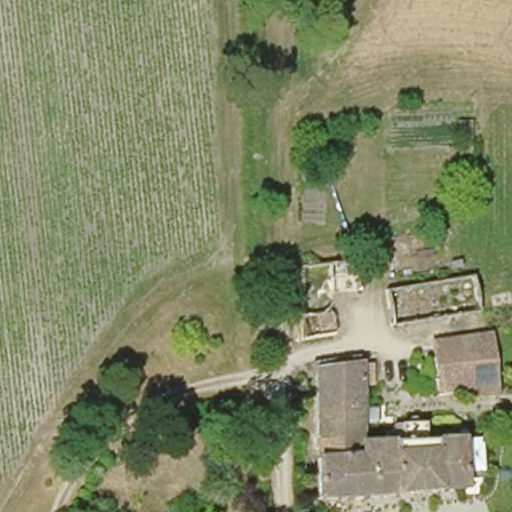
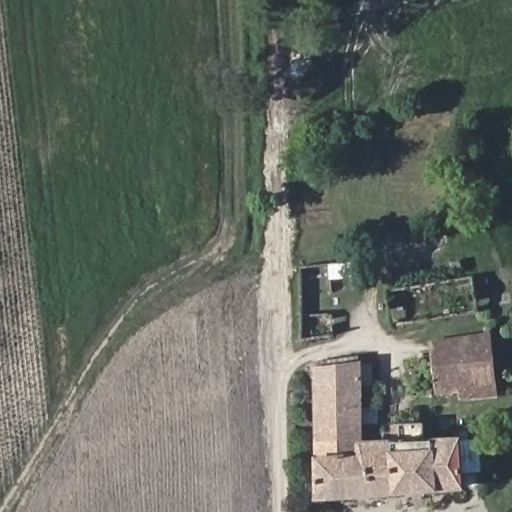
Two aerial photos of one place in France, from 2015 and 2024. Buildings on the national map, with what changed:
unchanged [(301,260),(356,255),(360,297),(335,302),(339,332),(302,336),(301,260)]
unchanged [(496,395),(454,397),(452,392),(436,392),(434,366),(433,348),(470,346),(491,344),(496,395)]
unchanged [(382,361),(384,378),(370,382),(378,452),(399,450),(396,432),(426,427),(429,447),(463,443),(469,489),(321,507),(317,363),(369,358),(370,363),(382,361)]

